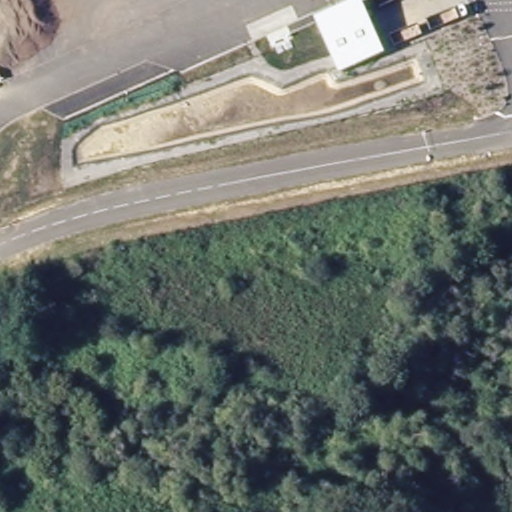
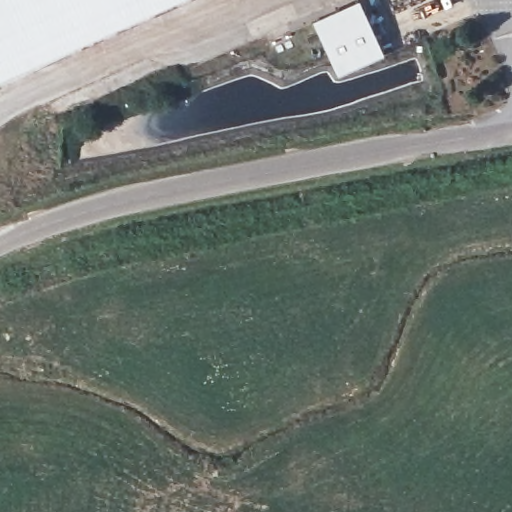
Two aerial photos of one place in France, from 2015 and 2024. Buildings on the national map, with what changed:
new [(0,80),(0,0),(179,0),(0,80)]
unchanged [(385,53),(339,72),(314,18),(355,0),(360,0),(385,53)]

